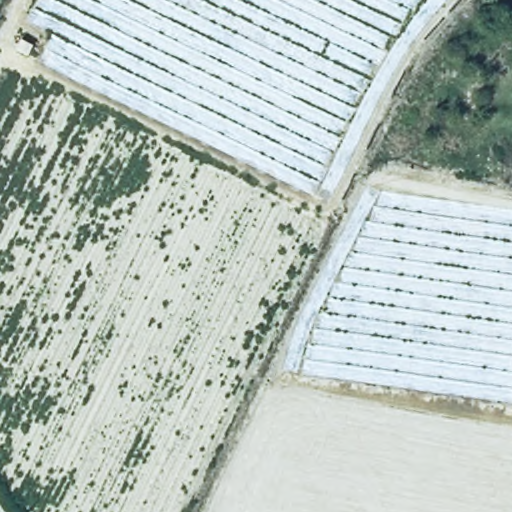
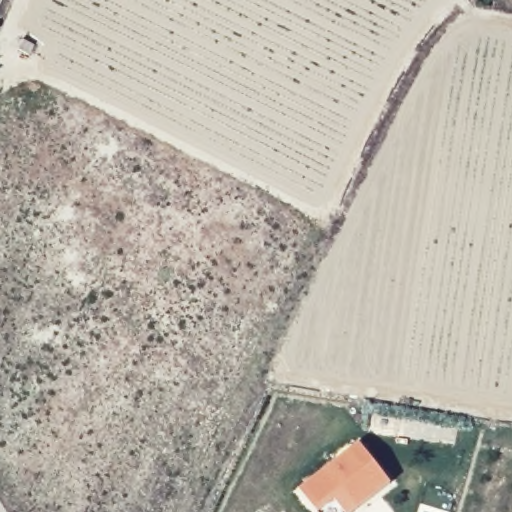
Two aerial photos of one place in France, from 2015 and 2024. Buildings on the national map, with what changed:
new [(354,512),(313,512),(296,490),(356,443),(389,485),(354,512)]

